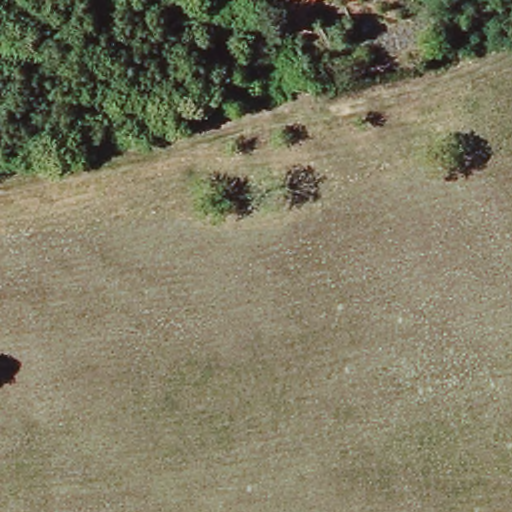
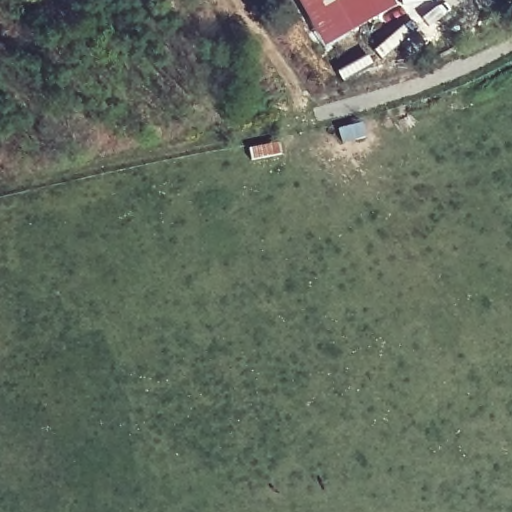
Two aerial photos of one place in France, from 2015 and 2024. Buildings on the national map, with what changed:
new [(399,5),(323,50),(300,12),(293,0),(396,0),(399,5)]
new [(432,1),(403,10),(401,0),(432,0),(432,1)]

